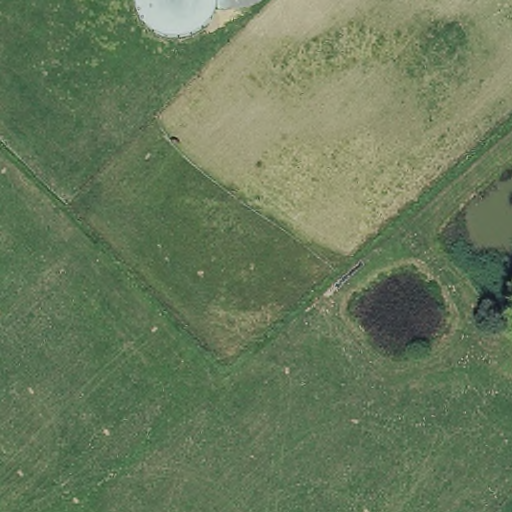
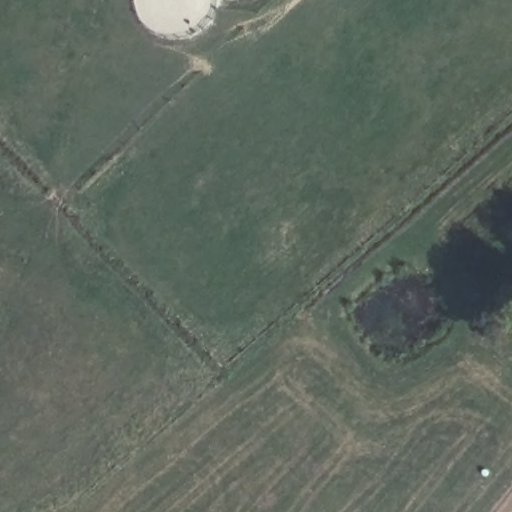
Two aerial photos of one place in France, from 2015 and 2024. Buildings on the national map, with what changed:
[]

